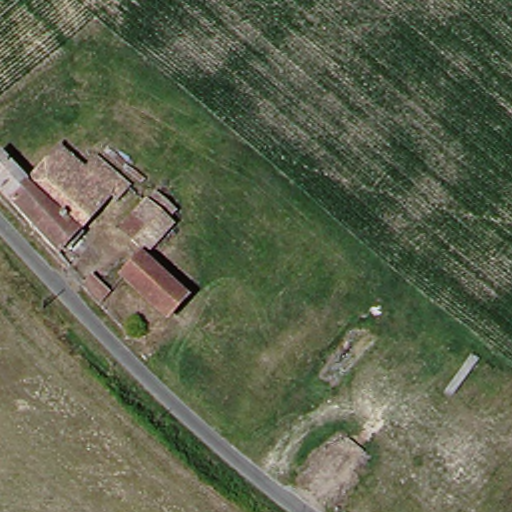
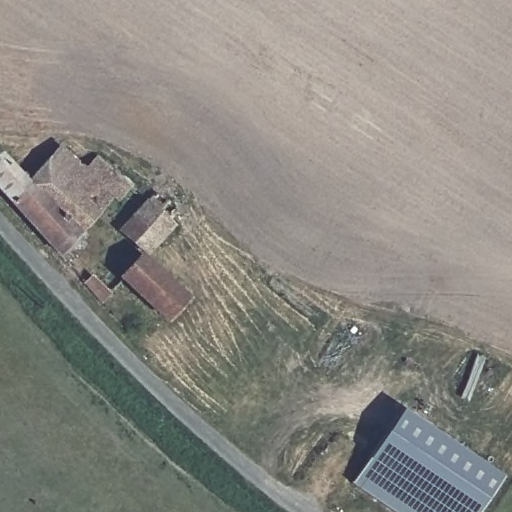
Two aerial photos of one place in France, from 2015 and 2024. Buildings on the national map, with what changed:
unchanged [(12,154),(34,180),(64,145),(74,132),(112,170),(123,180),(131,190),(121,201),(114,194),(64,249),(0,180),(0,165),(12,154)]
unchanged [(147,196),(174,221),(149,249),(122,225),(147,196)]
unchanged [(150,253),(189,293),(170,313),(130,276),(150,253)]
new [(512,471),(512,472),(485,512),(394,512),(353,484),(409,401),(512,471)]

